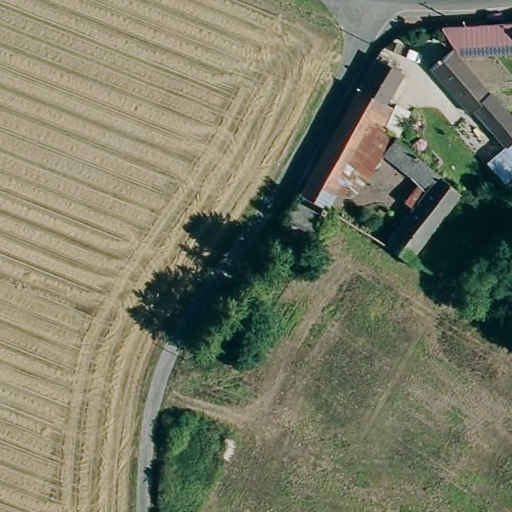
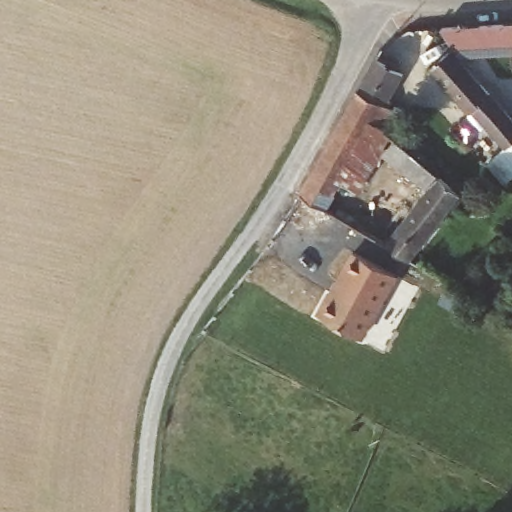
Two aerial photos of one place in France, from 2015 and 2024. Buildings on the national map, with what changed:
unchanged [(512,53),(457,55),(441,30),(512,25),(512,53)]
unchanged [(512,155),(475,117),(472,120),(429,71),(450,52),(480,83),(512,119),(512,155)]
unchanged [(375,62),(401,76),(383,106),(357,93),(375,62)]
unchanged [(309,178),(357,93),(383,106),(393,111),(390,117),(384,131),(348,192),(343,200),(335,195),(325,210),(300,195),(309,178)]
unchanged [(384,131),(416,159),(430,170),(458,195),(410,262),(385,246),(411,208),(403,200),(416,182),(383,155),(355,196),(348,192),(384,131)]
demolished [(311,235),(285,221),(300,195),(325,210),(311,235)]
new [(361,341),(315,315),(353,249),(399,277),(361,341)]

